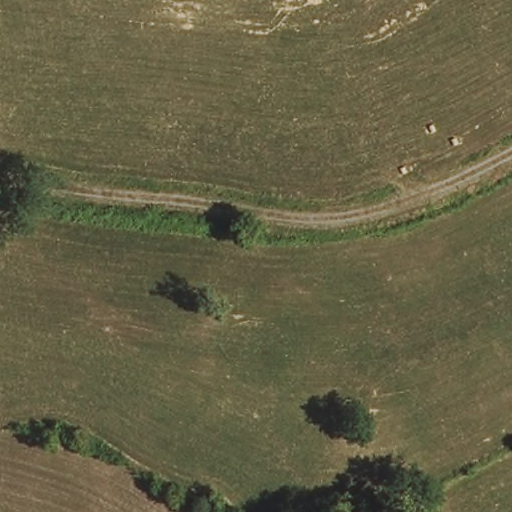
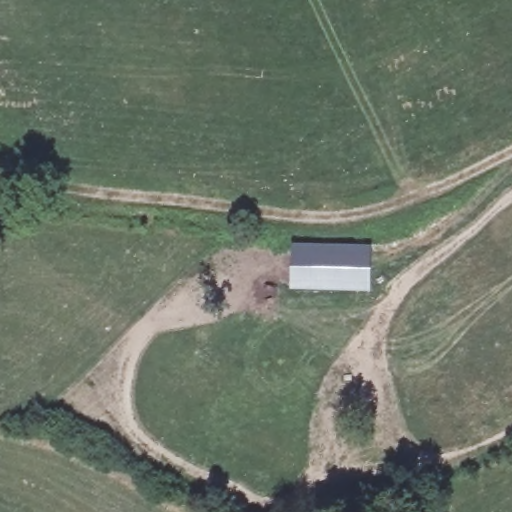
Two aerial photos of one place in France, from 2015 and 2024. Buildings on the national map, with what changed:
new [(291,241),(372,243),(371,290),(289,288),(291,241)]

